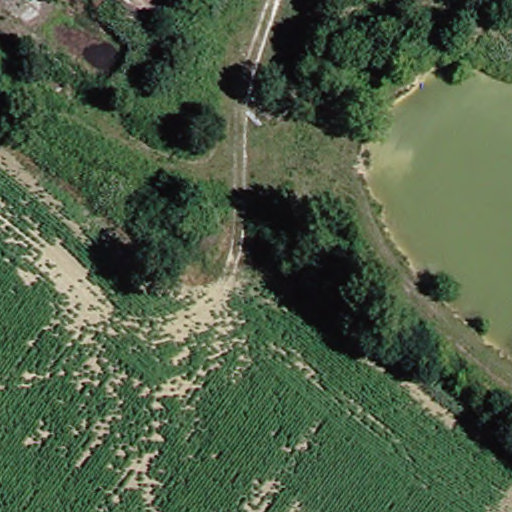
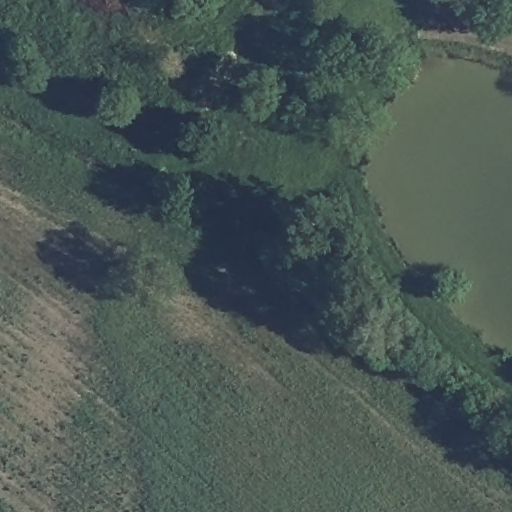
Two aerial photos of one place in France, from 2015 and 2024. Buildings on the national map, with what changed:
unchanged [(178,8),(167,0),(185,0),(178,8)]

